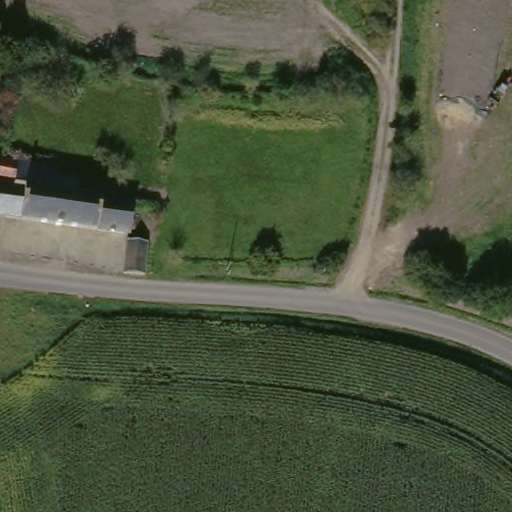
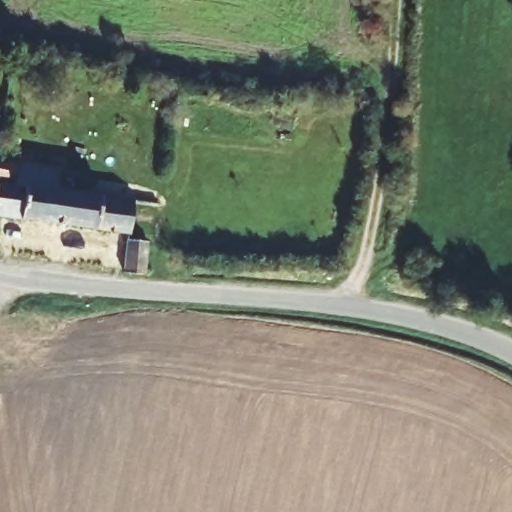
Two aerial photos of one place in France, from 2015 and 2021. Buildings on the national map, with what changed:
unchanged [(1,214),(0,214),(0,154),(9,156),(1,214)]
unchanged [(9,156),(77,168),(74,189),(69,228),(1,214),(9,156)]
unchanged [(74,189),(145,203),(137,242),(69,228),(74,189)]
unchanged [(155,254),(153,265),(150,284),(130,280),(135,251),(155,254)]

